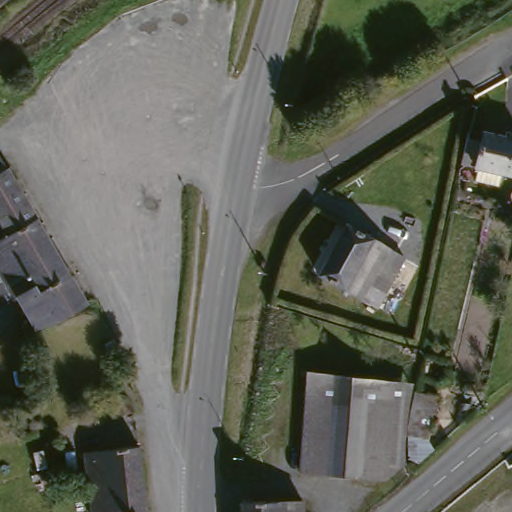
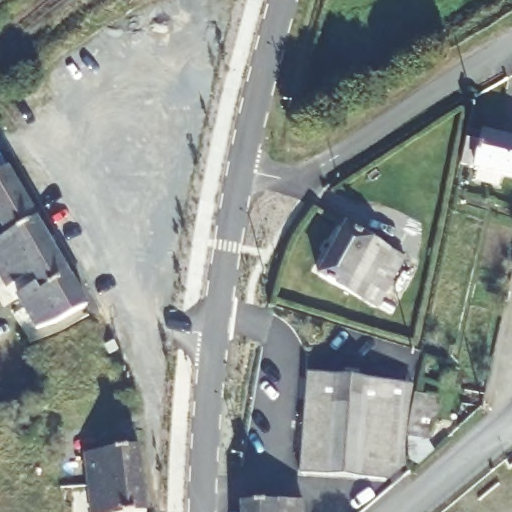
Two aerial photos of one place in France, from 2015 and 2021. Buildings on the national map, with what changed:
unchanged [(0,9),(0,0),(10,0),(0,9)]
unchanged [(486,174),(483,173),(483,172),(470,168),(477,131),(493,135),(494,132),(512,137),(512,181),(510,180),(506,193),(483,186),(486,174)]
unchanged [(2,168),(9,166),(86,306),(36,330),(20,298),(0,309),(0,164),(2,168)]
unchanged [(370,279),(365,294),(319,280),(337,225),(386,239),(396,245),(390,266),(385,284),(370,279)]
unchanged [(418,395),(441,398),(435,430),(440,448),(425,466),(408,466),(408,472),(303,475),(310,374),(420,386),(418,395)]
unchanged [(107,512),(100,471),(87,472),(86,452),(147,446),(157,512),(107,512)]
unchanged [(240,512),(240,499),(309,501),(309,512),(240,512)]

